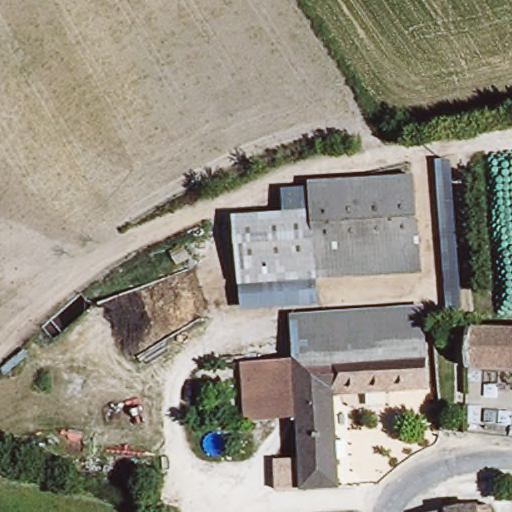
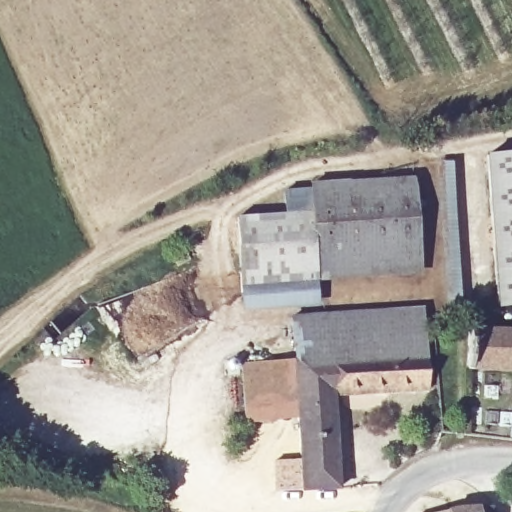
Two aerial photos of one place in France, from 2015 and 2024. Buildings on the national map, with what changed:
new [(512,306),(497,307),(485,156),(512,154),(512,306)]
unchanged [(238,292),(233,213),(280,209),(279,184),(304,182),(386,178),(404,177),(410,244),(410,254),(311,260),(314,287),(238,292)]
unchanged [(383,334),(382,361),(291,361),(287,319),(403,320),(404,315),(420,315),(423,334),(383,334)]
unchanged [(512,367),(465,368),(465,327),(512,327),(512,367)]
unchanged [(241,362),(291,361),(382,361),(383,334),(423,334),(426,334),(427,394),(330,399),(338,494),(286,495),(284,461),(301,461),(297,422),(247,424),(241,362)]
unchanged [(494,507),(495,512),(455,512),(494,507)]

